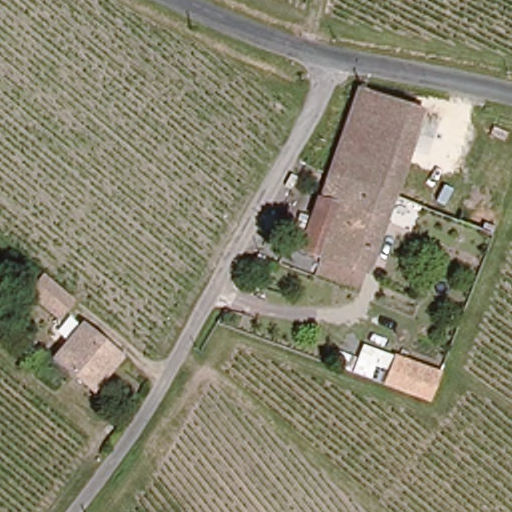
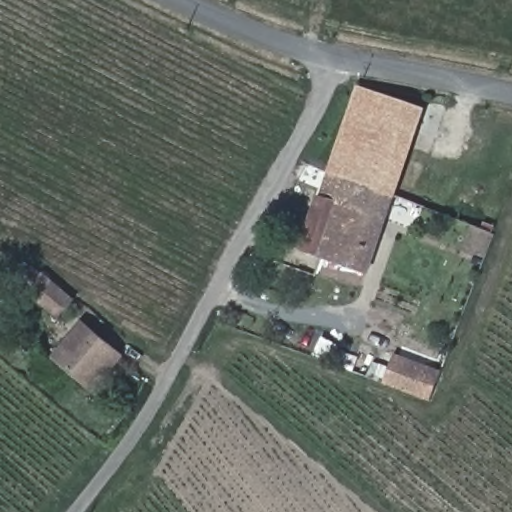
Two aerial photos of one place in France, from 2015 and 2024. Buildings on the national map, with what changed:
unchanged [(359,86),(422,107),(390,197),(347,181),(330,174),(359,86)]
unchanged [(321,190),(326,189),(330,174),(347,181),(325,257),(324,260),(299,251),(300,248),(321,190)]
unchanged [(390,197),(393,197),(394,197),(385,222),(367,271),(325,257),(347,181),(390,197)]
unchanged [(41,274),(79,306),(67,322),(28,289),(41,274)]
unchanged [(118,354),(92,387),(54,357),(79,325),(118,354)]
unchanged [(443,372),(433,399),(386,383),(396,355),(443,372)]

